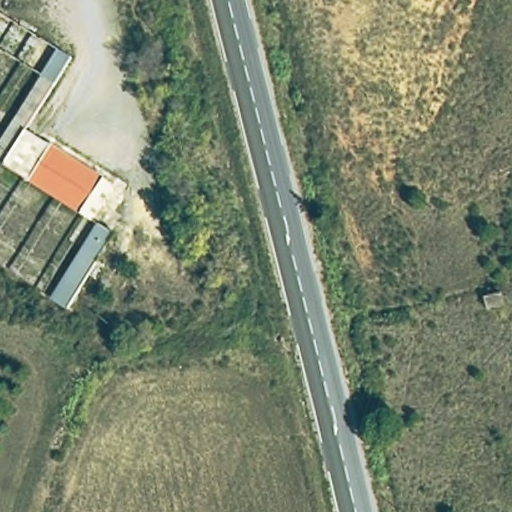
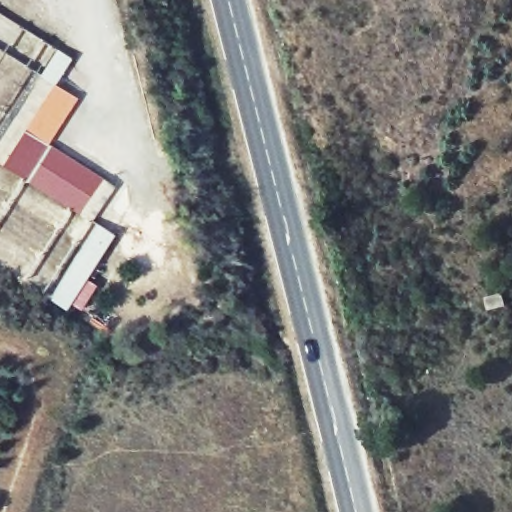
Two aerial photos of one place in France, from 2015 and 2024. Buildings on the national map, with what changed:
unchanged [(0,164),(0,136),(38,74),(53,83),(24,132),(113,187),(88,220),(0,164)]
unchanged [(63,308),(50,299),(97,226),(112,237),(63,308)]

